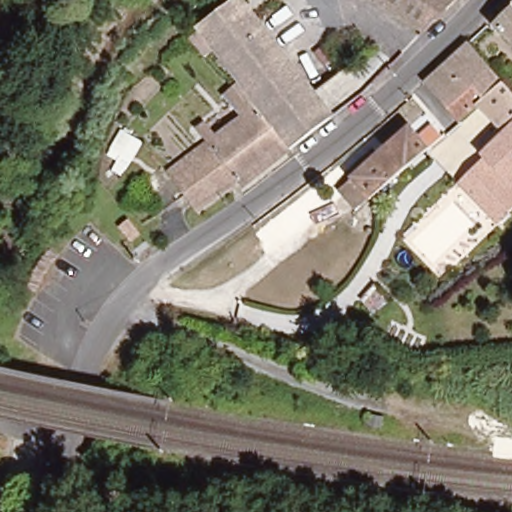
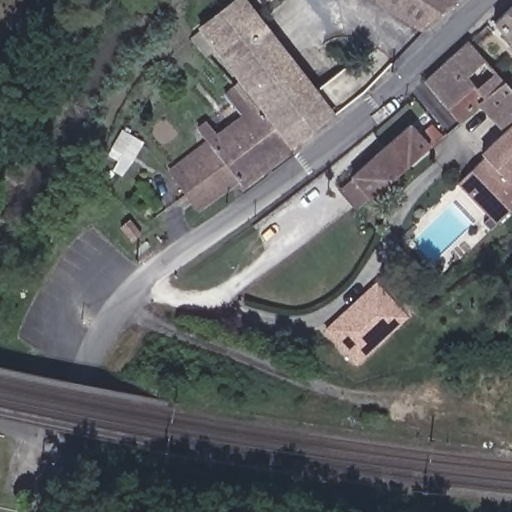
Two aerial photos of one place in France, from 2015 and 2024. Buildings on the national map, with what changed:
unchanged [(375,0),(454,0),(424,32),(375,0)]
unchanged [(511,0),(512,0),(512,37),(494,15),(511,0)]
unchanged [(332,115),(290,151),(201,35),(242,2),(332,115)]
unchanged [(483,102),(464,118),(430,76),(471,41),(487,61),(506,83),(512,90),(512,130),(510,132),(483,102)]
unchanged [(246,189),(237,179),(199,211),(172,177),(212,146),(189,118),(202,108),(214,121),(225,112),(215,97),(230,84),(290,155),(246,189)]
unchanged [(398,130),(401,134),(422,116),(439,135),(358,204),(340,180),(398,130)]
unchanged [(488,158),(485,154),(510,132),(512,130),(512,210),(496,224),(460,184),(478,166),(488,158)]
unchanged [(125,240),(134,231),(148,246),(140,254),(125,240)]
new [(322,332),(376,283),(410,318),(358,366),(347,360),(322,332)]

